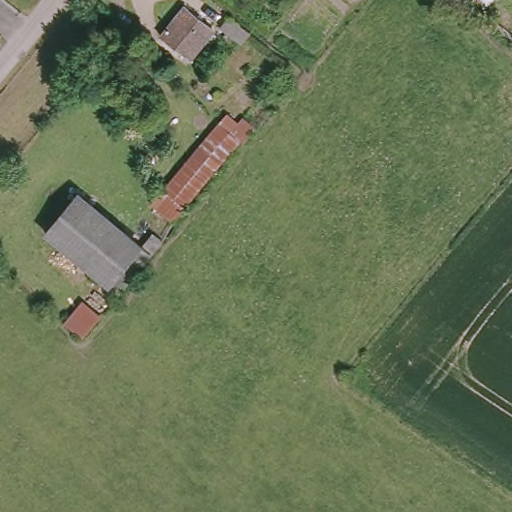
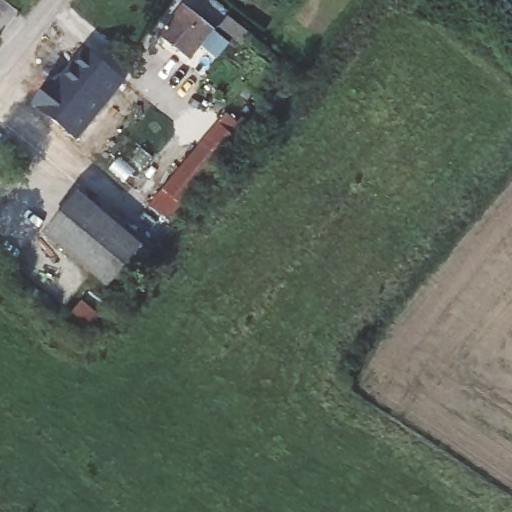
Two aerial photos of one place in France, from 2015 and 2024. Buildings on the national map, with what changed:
unchanged [(196,56),(169,33),(191,8),(217,30),(196,56)]
new [(32,105),(52,81),(56,84),(85,48),(125,81),(77,142),(32,105)]
unchanged [(229,106),(252,125),(178,220),(155,201),(229,106)]
unchanged [(86,188),(160,250),(128,290),(52,229),(86,188)]
unchanged [(87,295),(107,310),(87,336),(67,320),(87,295)]

